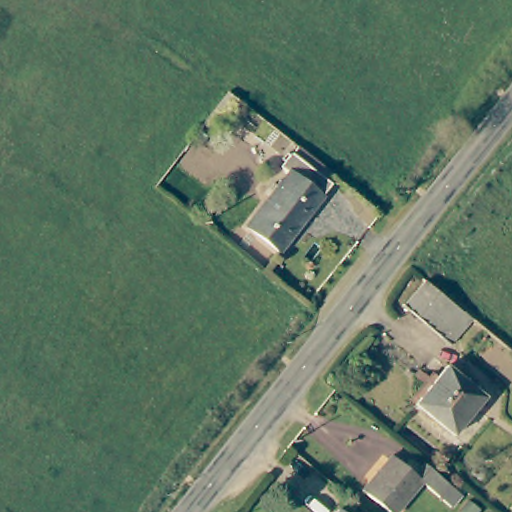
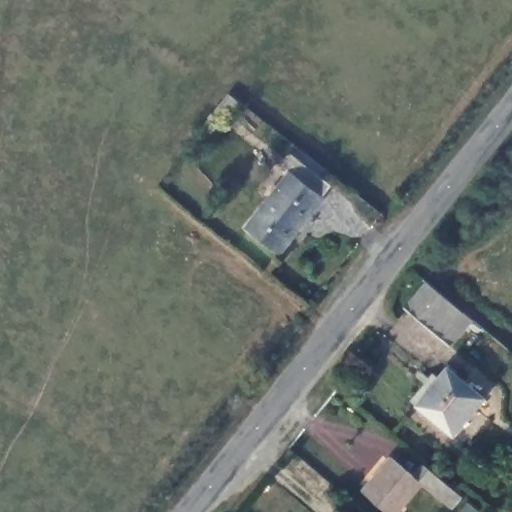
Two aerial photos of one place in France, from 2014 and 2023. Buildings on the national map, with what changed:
unchanged [(289,172),(282,167),(292,153),(331,184),(278,250),(247,225),(289,172)]
unchanged [(440,338),(404,307),(424,281),(462,313),(469,319),(447,344),(440,338)]
unchanged [(420,404),(451,367),(487,398),(456,434),(420,404)]
unchanged [(424,482),(400,512),(391,512),(363,488),(390,453),(411,465),(420,454),(463,492),(451,503),(424,482)]
unchanged [(342,507),(348,512),(338,512),(342,507)]

